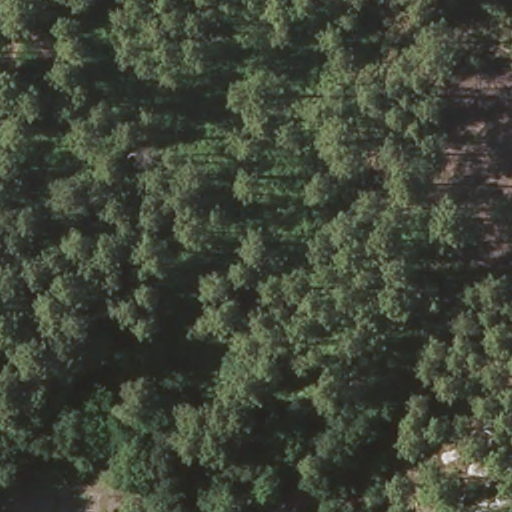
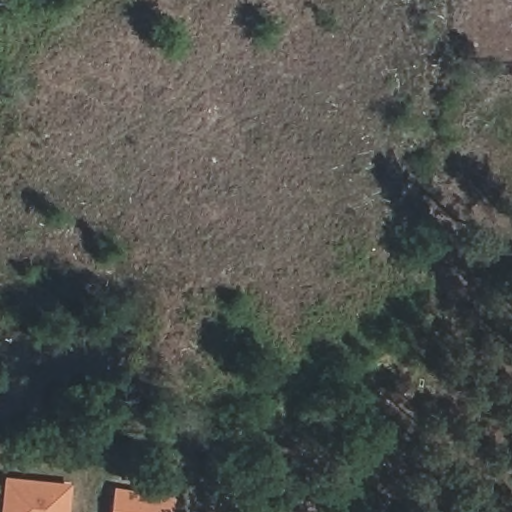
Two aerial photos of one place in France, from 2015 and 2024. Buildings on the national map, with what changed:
new [(258,456),(278,473),(246,511),(225,494),(258,456)]
new [(0,512),(0,492),(1,477),(69,484),(67,512),(0,512)]
new [(108,512),(112,487),(174,498),(172,512),(108,512)]

